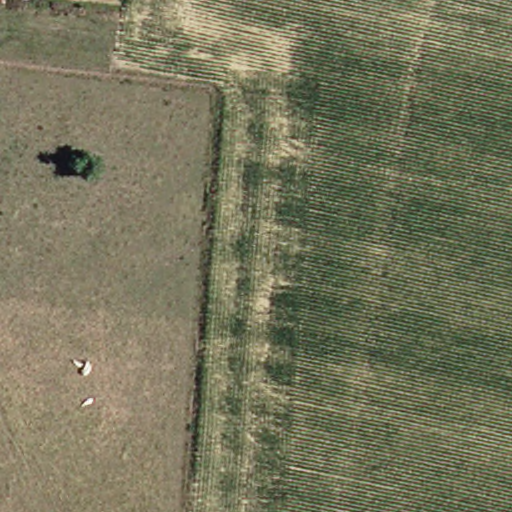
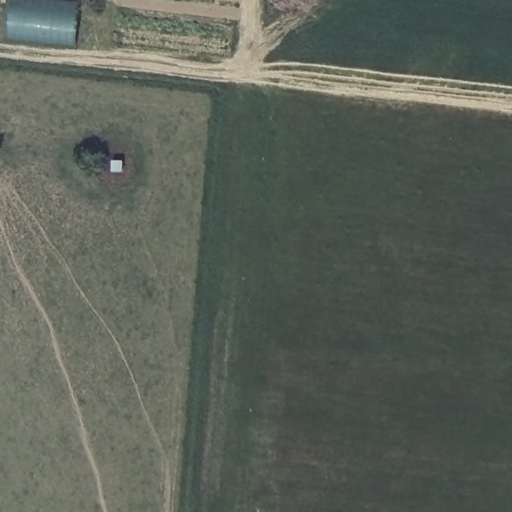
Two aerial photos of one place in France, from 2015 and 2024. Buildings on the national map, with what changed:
new [(73,45),(7,38),(12,0),(47,0),(77,3),(73,45)]

